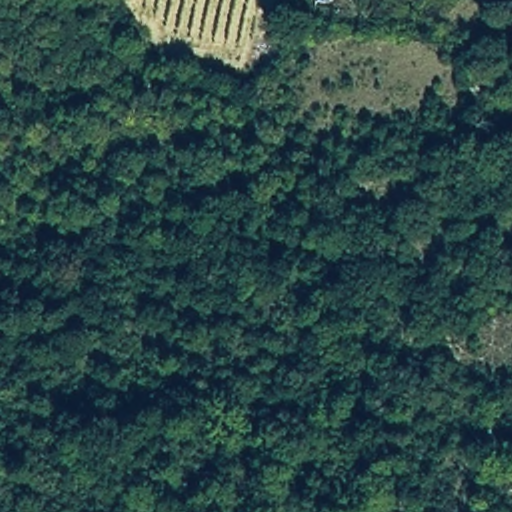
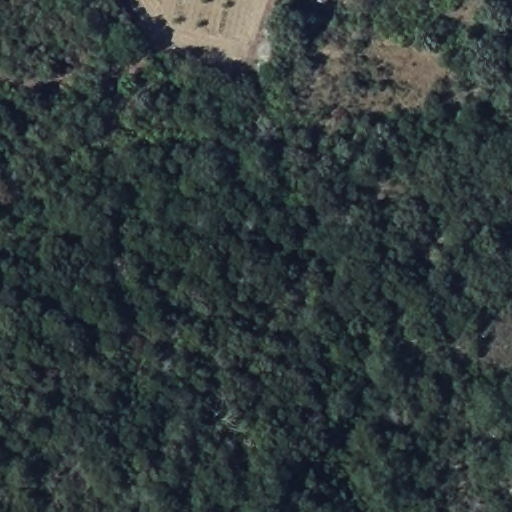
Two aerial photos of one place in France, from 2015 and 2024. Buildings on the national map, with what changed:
[]

